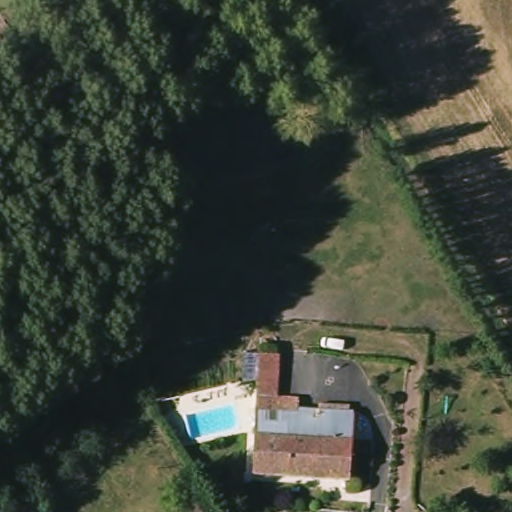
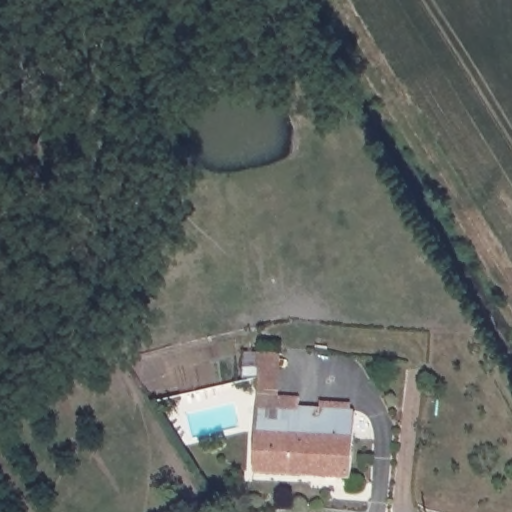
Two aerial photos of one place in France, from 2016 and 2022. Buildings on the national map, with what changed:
unchanged [(252,472),(256,391),(298,392),(298,407),(353,412),(349,475),(252,472)]

